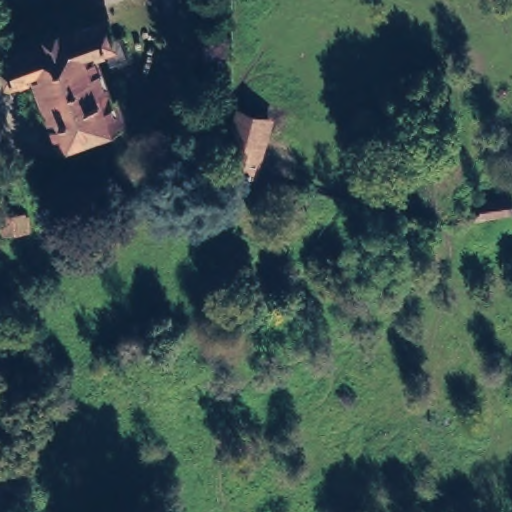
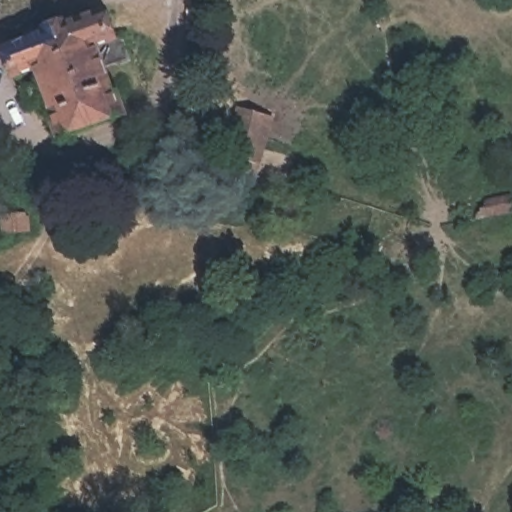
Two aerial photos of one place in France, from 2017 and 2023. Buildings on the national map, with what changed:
unchanged [(124,41),(130,61),(129,63),(134,80),(121,85),(130,114),(74,134),(64,105),(62,101),(58,100),(55,99),(47,102),(42,87),(51,84),(53,82),(55,79),(50,68),(30,74),(20,47),(117,13),(125,39),(124,41)]
unchanged [(256,174),(232,167),(239,143),(237,143),(239,138),(241,131),(247,109),(277,118),(270,139),(260,175),(256,174)]
unchanged [(492,217),(472,220),(485,203),(492,217)]

